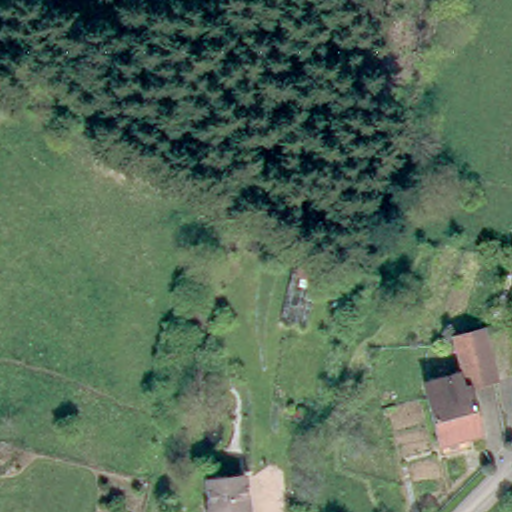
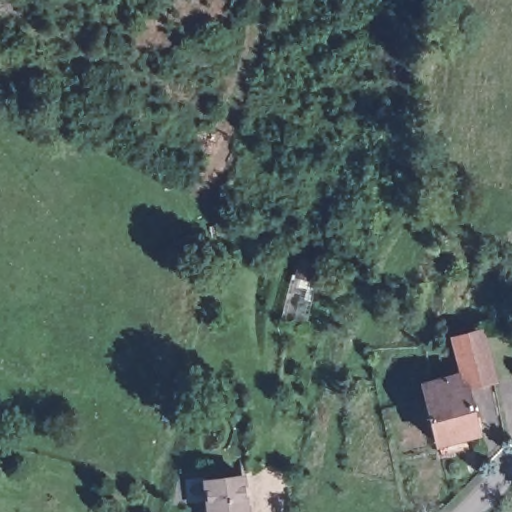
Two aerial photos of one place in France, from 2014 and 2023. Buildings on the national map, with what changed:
unchanged [(421,390),(463,378),(458,359),(453,335),(480,329),(486,352),(493,383),(466,390),(478,430),(437,444),(421,390)]
unchanged [(239,470),(243,512),(209,512),(205,474),(239,470)]

